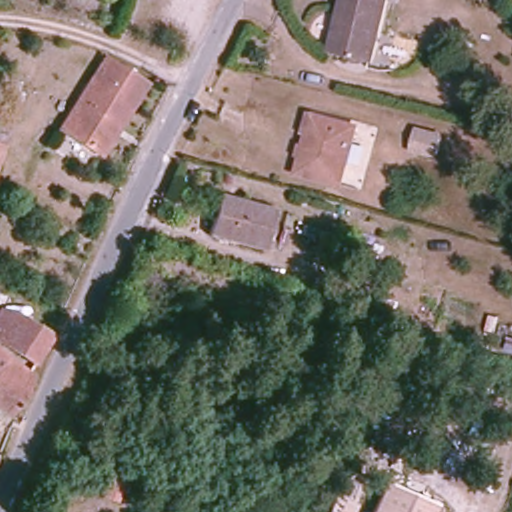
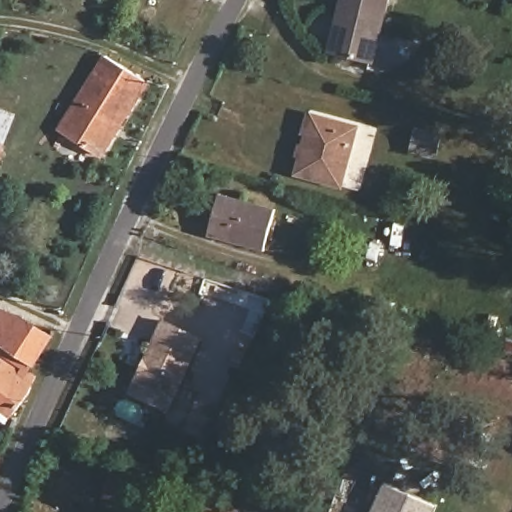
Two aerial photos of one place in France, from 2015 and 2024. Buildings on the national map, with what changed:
unchanged [(328,53),(343,0),(387,0),(370,63),(328,53)]
unchanged [(59,130),(104,59),(152,87),(105,160),(59,130)]
unchanged [(16,123),(5,144),(0,161),(0,117),(16,123)]
unchanged [(296,174),(313,121),(355,134),(340,186),(296,174)]
unchanged [(440,141),(435,160),(411,154),(416,135),(440,141)]
unchanged [(266,247),(209,231),(221,196),(276,211),(266,247)]
unchanged [(316,253),(319,233),(335,236),(334,255),(316,253)]
unchanged [(31,371),(36,378),(9,420),(0,413),(0,311),(55,338),(31,371)]
new [(205,338),(173,412),(131,395),(163,320),(205,338)]
unchanged [(510,337),(512,337),(512,351),(507,350),(510,337)]
unchanged [(121,504),(103,499),(113,467),(131,472),(121,504)]
unchanged [(433,512),(370,512),(384,479),(437,501),(433,512)]

